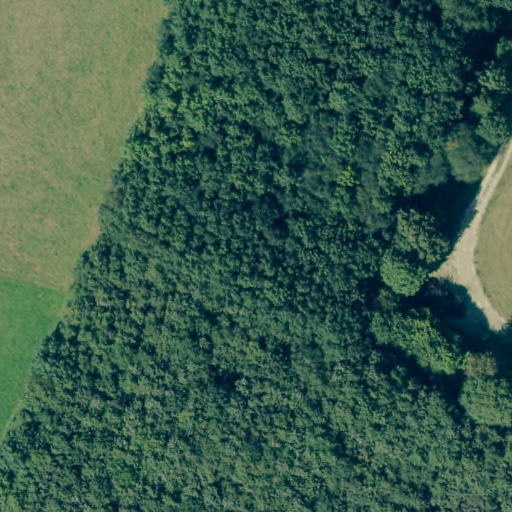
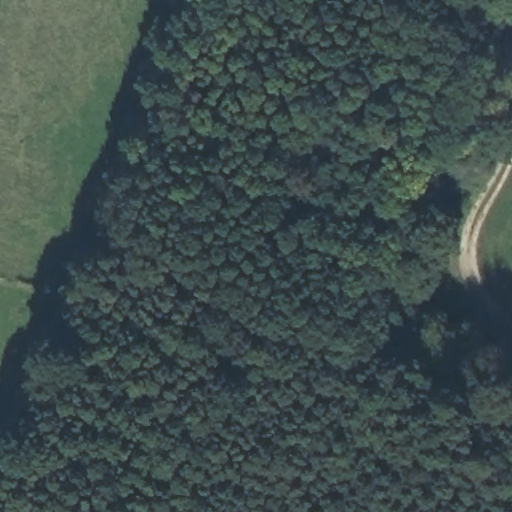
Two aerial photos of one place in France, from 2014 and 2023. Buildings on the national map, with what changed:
[]

